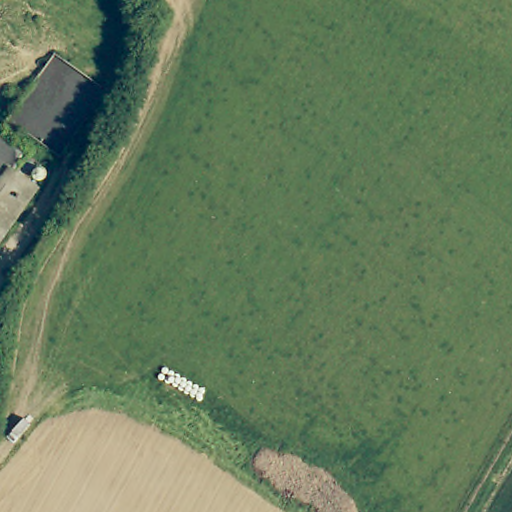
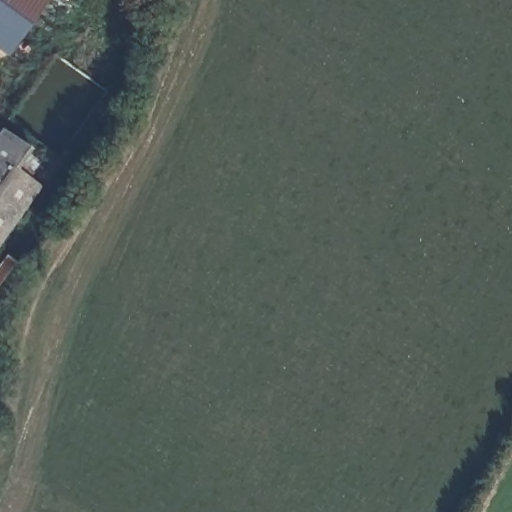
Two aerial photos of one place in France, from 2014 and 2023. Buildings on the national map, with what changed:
new [(0,53),(0,0),(45,0),(46,1),(7,58),(0,53)]
unchanged [(38,151),(30,161),(50,177),(0,245),(0,135),(5,127),(38,151)]

